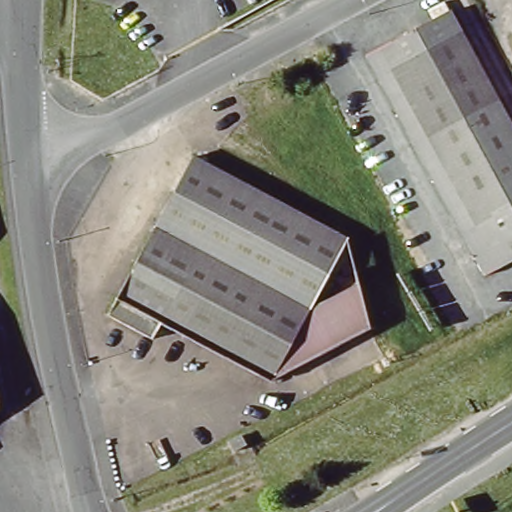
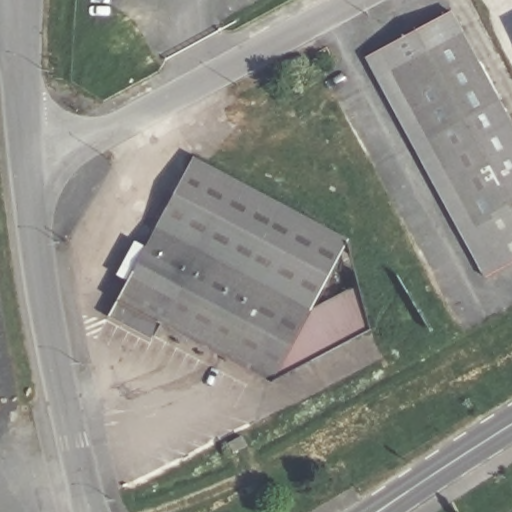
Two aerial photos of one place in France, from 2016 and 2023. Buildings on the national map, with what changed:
unchanged [(460,8),(512,106),(512,264),(493,274),(375,53),(460,8)]
unchanged [(203,156),(358,239),(324,302),(369,280),(381,323),(279,378),(171,320),(161,339),(118,315),(203,156)]
unchanged [(0,417),(0,372),(8,410),(0,417)]

